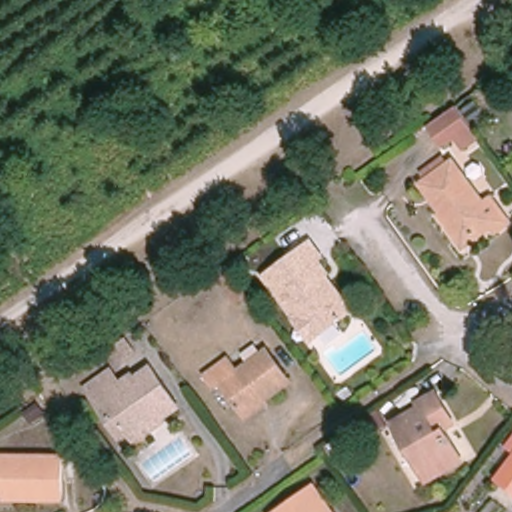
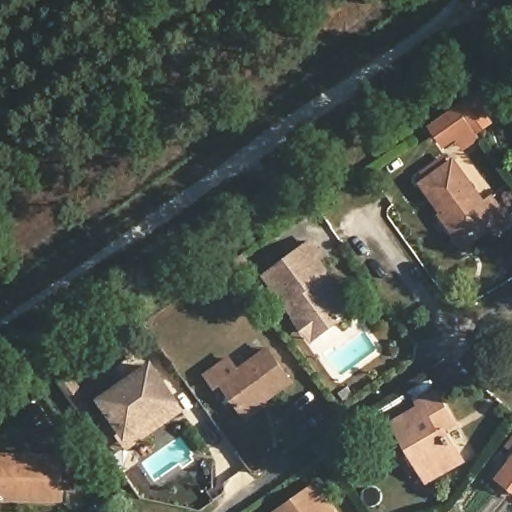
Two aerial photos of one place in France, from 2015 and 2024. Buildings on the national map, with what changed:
unchanged [(457,102),(475,127),(465,135),(458,125),(446,133),(434,117),(457,101),(457,102)]
unchanged [(464,243),(422,184),(454,161),(484,204),(493,198),(510,222),(496,232),(491,224),(464,243)]
unchanged [(294,323),(298,320),(266,276),(311,242),(322,257),(316,262),(326,276),(324,277),(351,312),(346,316),(317,337),(309,343),(294,323)]
unchanged [(267,350),(291,382),(245,416),(222,386),(217,390),(207,376),(229,360),(237,372),(267,350)]
unchanged [(90,392),(116,375),(125,388),(137,380),(140,383),(156,372),(185,415),(168,426),(162,418),(131,439),(119,422),(113,426),(90,392)]
unchanged [(394,422),(421,407),(418,402),(436,392),(454,424),(444,430),(438,433),(441,440),(448,436),(463,462),(428,482),(394,422)]
unchanged [(32,423),(25,412),(38,404),(45,415),(32,423)]
unchanged [(0,499),(0,456),(62,457),(62,500),(0,499)]
unchanged [(512,461),(512,489),(498,478),(512,461)]
unchanged [(332,512),(277,512),(314,486),(332,512)]

